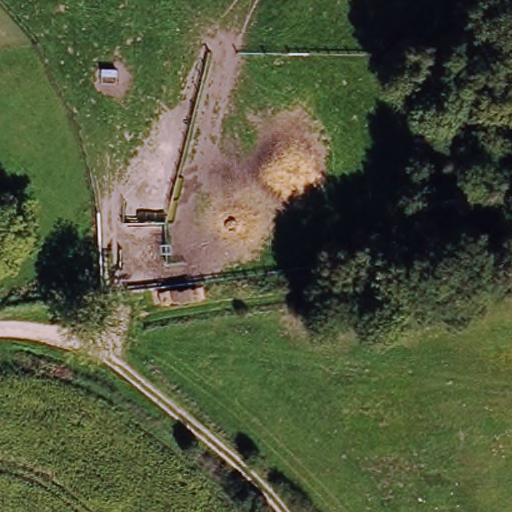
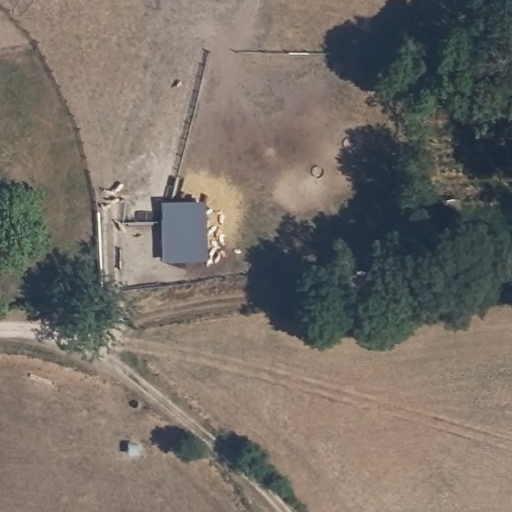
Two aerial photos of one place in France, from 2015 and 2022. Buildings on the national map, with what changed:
unchanged [(427,199),(460,195),(460,213),(444,215),(445,235),(432,234),(427,199)]
new [(210,202),(210,261),(165,261),(165,202),(210,202)]

